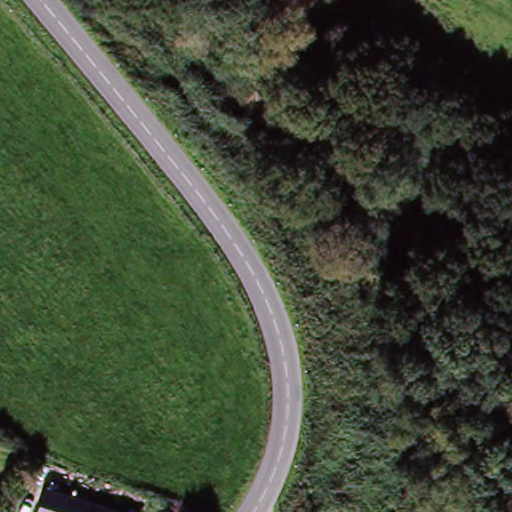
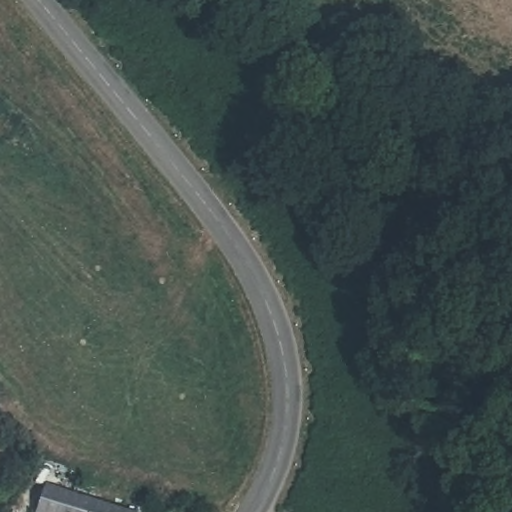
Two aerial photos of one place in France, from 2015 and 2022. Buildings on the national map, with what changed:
unchanged [(55,476),(118,512),(46,512),(36,506),(55,476)]

